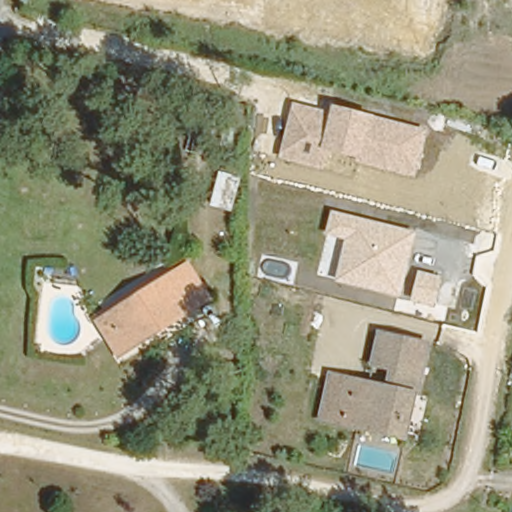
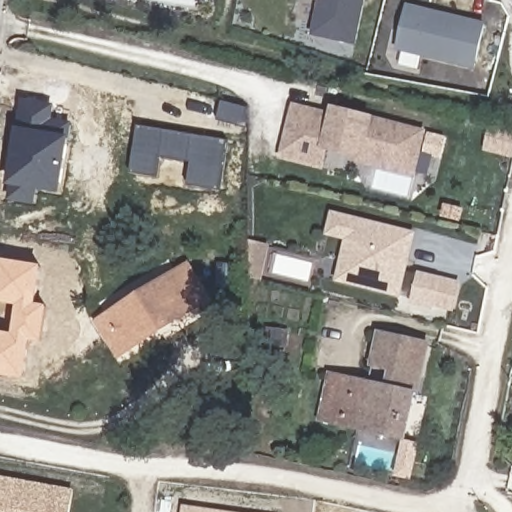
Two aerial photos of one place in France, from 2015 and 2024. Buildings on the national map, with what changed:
demolished [(315,32),(101,1),(99,0),(317,0),(315,32)]
new [(310,35),(317,0),(364,0),(355,44),(310,35)]
demolished [(422,52),(315,32),(317,0),(432,0),(422,52)]
new [(474,68),(398,50),(408,6),(484,24),(474,68)]
new [(12,186),(8,185),(17,127),(19,127),(22,99),(56,104),(54,119),(73,122),(71,137),(70,137),(62,193),(39,190),(36,204),(9,200),(12,186)]
unchanged [(413,177),(348,162),(350,156),(326,149),(323,167),(281,157),(295,101),(332,110),(333,105),(426,130),(413,177)]
new [(139,125),(230,141),(223,190),(189,185),(193,162),(162,157),(159,177),(131,173),(139,125)]
new [(512,136),(512,142),(509,157),(484,150),(490,130),(512,136)]
unchanged [(400,296),(337,282),(347,238),(328,235),(334,212),(417,234),(400,296)]
new [(272,245),(263,279),(241,273),(250,239),(272,245)]
new [(14,333),(18,306),(0,302),(0,262),(1,258),(43,266),(38,303),(49,305),(44,342),(30,341),(25,379),(0,375),(0,331),(14,333)]
unchanged [(95,312),(104,307),(174,265),(186,258),(206,295),(196,301),(125,343),(116,348),(95,312)]
new [(411,305),(418,272),(439,276),(461,281),(454,310),(435,306),(433,309),(411,305)]
unchanged [(387,380),(390,366),(373,361),(380,329),(427,341),(416,391),(406,390),(397,429),(320,411),(330,367),(387,380)]
new [(75,490),(71,512),(0,512),(0,476),(75,490)]
new [(230,512),(182,512),(183,505),(230,512)]

